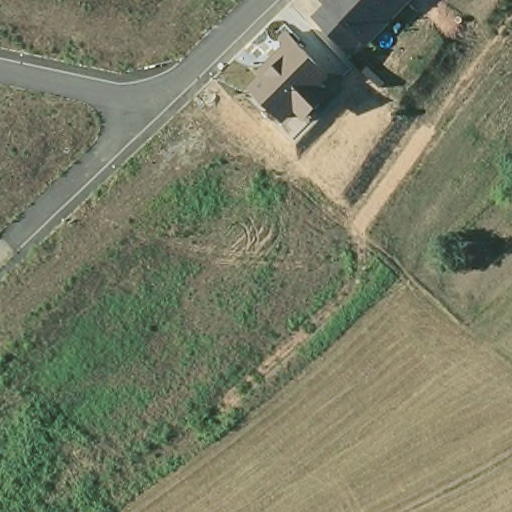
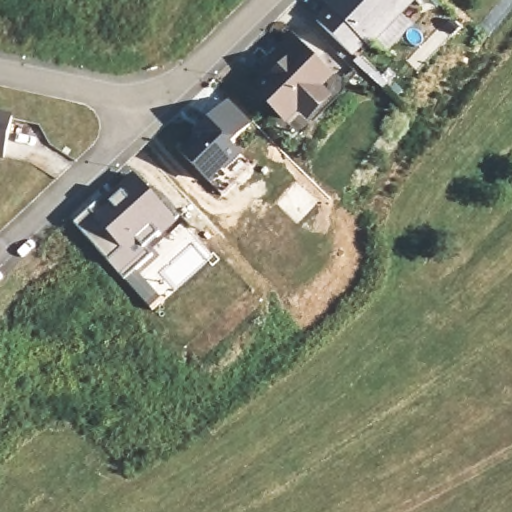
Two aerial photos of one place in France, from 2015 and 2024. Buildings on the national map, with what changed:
unchanged [(375,33),(370,39),(365,35),(351,49),(317,16),(331,1),(329,0),(408,0),(400,8),(412,19),(387,44),(375,33)]
unchanged [(322,88),(330,97),(312,115),(289,120),(261,91),(275,77),(271,74),(284,61),(295,50),(297,49),(288,40),(294,34),(302,43),(335,76),(322,88)]
new [(252,122),(232,145),(241,154),(212,184),(177,152),(229,99),(252,122)]
new [(12,118),(4,158),(0,158),(0,115),(12,118)]
new [(177,221),(162,239),(157,234),(145,246),(152,253),(126,278),(74,224),(102,197),(106,202),(136,173),(177,221)]

